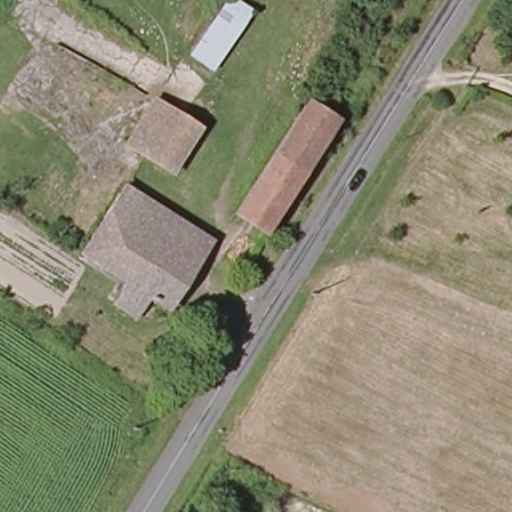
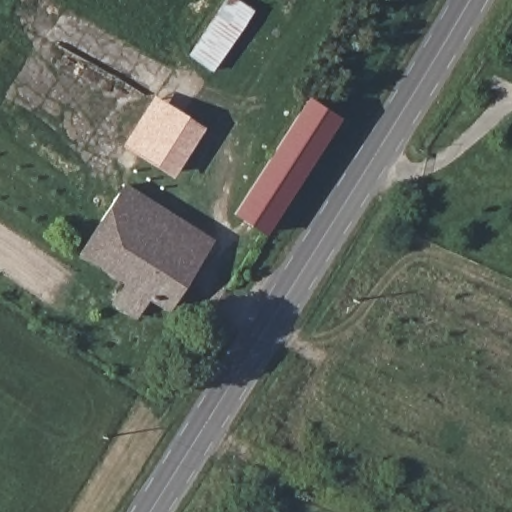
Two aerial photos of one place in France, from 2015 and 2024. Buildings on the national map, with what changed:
unchanged [(227,0),(241,0),(257,11),(216,74),(191,57),(227,0)]
unchanged [(160,102),(202,132),(175,176),(131,146),(160,102)]
unchanged [(310,103),(340,122),(270,235),(241,217),(310,103)]
unchanged [(175,309),(160,301),(155,308),(145,302),(139,312),(126,303),(140,283),(95,253),(121,210),(111,205),(122,191),(129,195),(134,189),(218,242),(175,309)]

